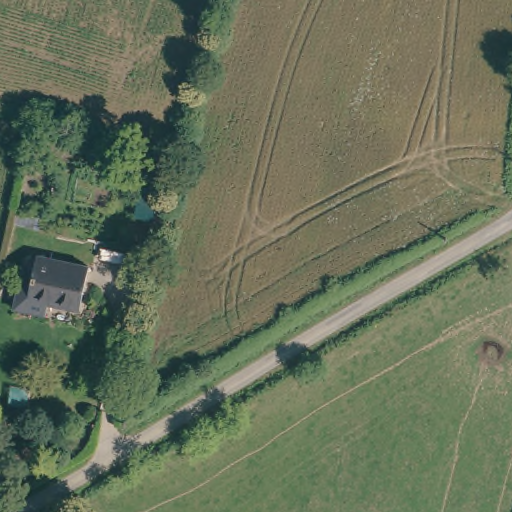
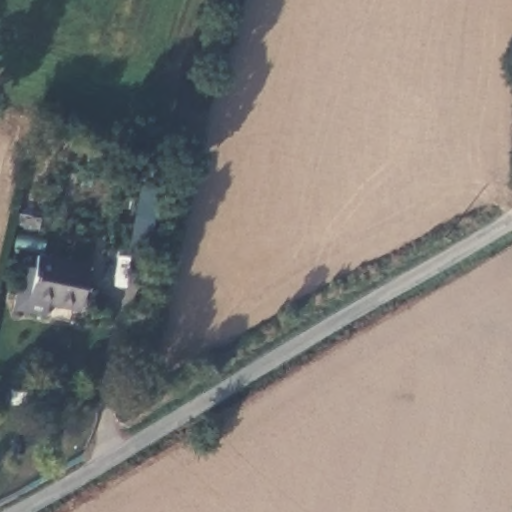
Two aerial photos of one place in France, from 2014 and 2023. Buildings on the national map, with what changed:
unchanged [(97,255),(91,296),(58,291),(57,303),(25,298),(32,251),(44,252),(45,247),(97,255)]

